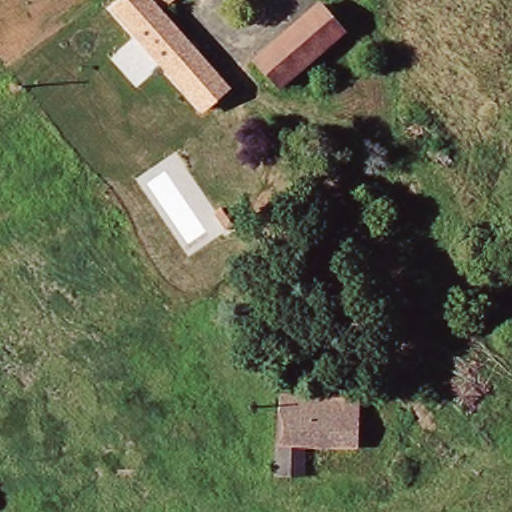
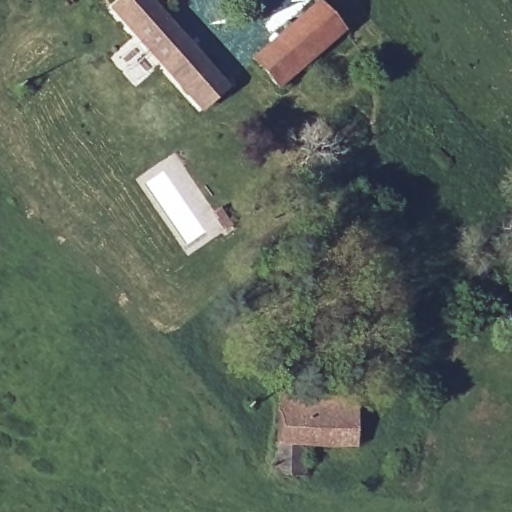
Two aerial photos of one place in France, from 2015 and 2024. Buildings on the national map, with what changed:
unchanged [(225,93),(200,115),(110,13),(125,0),(142,0),(156,16),(225,93)]
unchanged [(142,0),(176,0),(156,16),(142,0)]
unchanged [(344,31),(280,87),(257,61),(321,5),(344,31)]
unchanged [(415,248),(408,254),(401,248),(408,241),(415,248)]
unchanged [(356,403),(355,451),(318,450),(301,449),(301,480),(273,480),(275,448),(276,417),(278,399),(356,403)]

